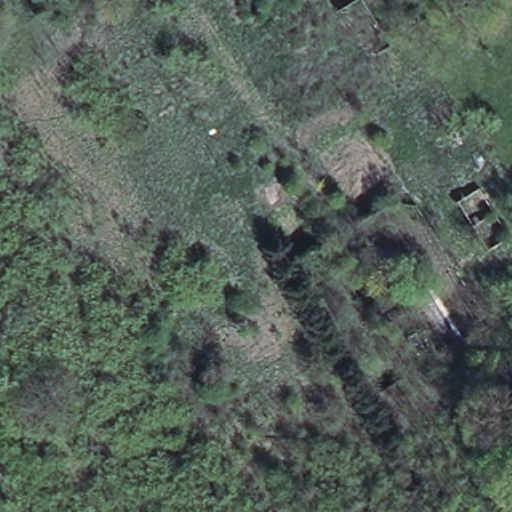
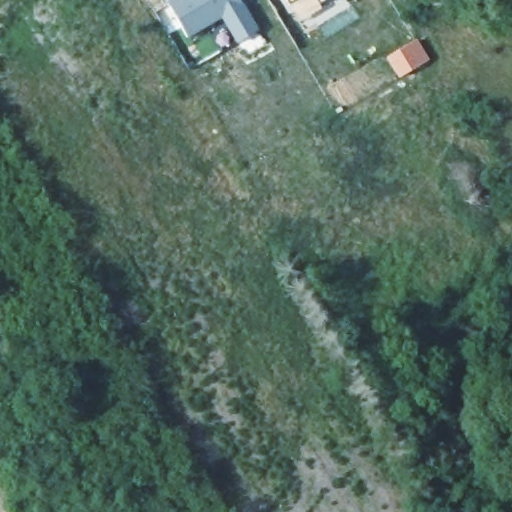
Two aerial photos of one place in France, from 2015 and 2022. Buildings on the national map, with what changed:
new [(172,0),(240,0),(258,30),(238,42),(222,16),(187,36),(167,3),(172,0)]
new [(289,5),(286,0),(298,0),(289,5)]
new [(320,5),(317,0),(328,0),(320,5)]
new [(414,42),(426,61),(407,73),(397,79),(386,59),(395,54),(414,42)]

